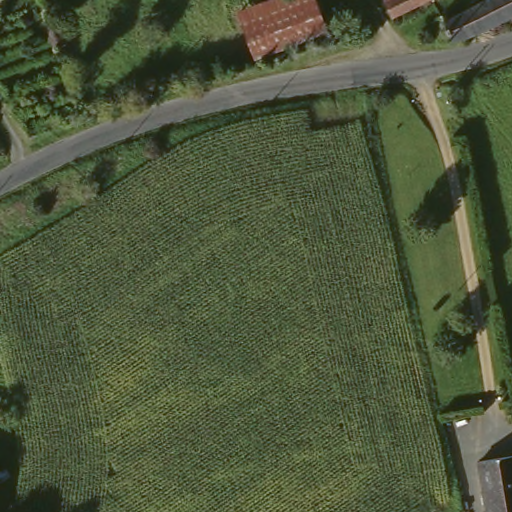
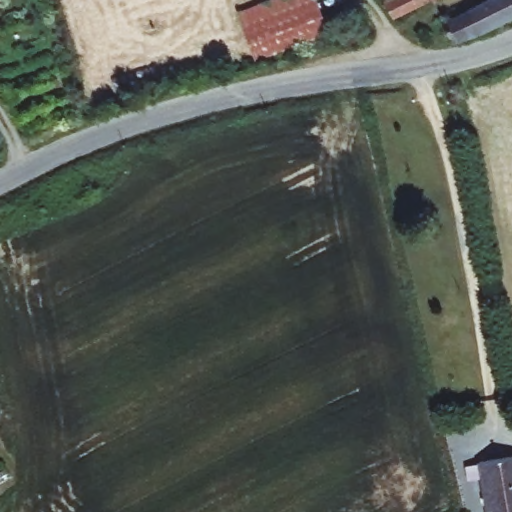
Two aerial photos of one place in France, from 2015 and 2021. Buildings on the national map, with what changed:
unchanged [(267,0),(317,0),(327,30),(256,57),(238,11),(267,0)]
unchanged [(393,16),(386,0),(426,0),(393,16)]
unchanged [(488,31),(460,42),(450,18),(489,0),(512,0),(512,20),(488,31)]
unchanged [(512,456),(512,512),(487,512),(480,461),(512,456)]

